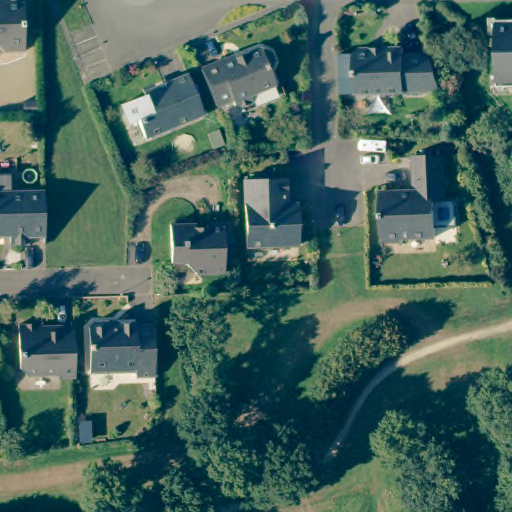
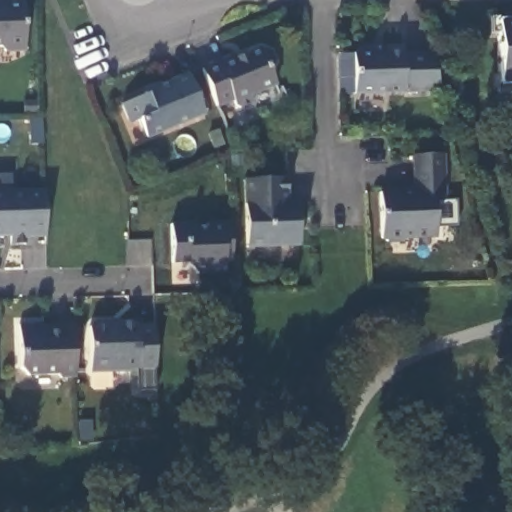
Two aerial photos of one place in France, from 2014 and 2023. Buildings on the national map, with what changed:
unchanged [(5,52),(0,49),(0,0),(22,0),(24,51),(5,52)]
unchanged [(501,93),(500,44),(499,26),(512,26),(512,93),(501,93)]
unchanged [(430,90),(354,91),(354,51),(358,46),(371,46),(376,51),(384,50),(384,45),(403,45),(404,53),(411,53),(419,53),(434,54),(444,86),(446,90),(432,90),(430,90)]
unchanged [(239,56),(241,59),(264,50),(274,54),(279,64),(274,74),(279,86),(254,96),(258,104),(245,109),(239,106),(236,101),(220,107),(206,70),(239,56)]
unchanged [(146,96),(144,93),(188,76),(203,114),(146,139),(139,121),(129,125),(121,106),(146,96)]
unchanged [(439,153),(442,154),(443,201),(433,201),(434,235),(406,237),(401,239),(387,240),(383,236),(380,236),(379,192),(401,191),(401,194),(409,193),(409,192),(414,191),(413,154),(439,153)]
unchanged [(284,175),(284,201),(291,201),(300,201),(300,244),(248,244),(247,177),(284,175)]
unchanged [(28,244),(10,245),(9,235),(0,236),(0,195),(44,194),(44,237),(28,237),(28,244)]
unchanged [(234,264),(225,264),(225,274),(199,275),(190,267),(191,264),(174,264),(174,228),(198,227),(198,231),(210,230),(210,227),(233,227),(234,264)]
unchanged [(73,379),(59,379),(53,376),(24,377),(16,369),(15,325),(40,324),(40,330),(54,330),(54,327),(71,326),(73,379)]
unchanged [(153,374),(136,374),(135,371),(118,371),(114,369),(110,369),(109,372),(89,372),(88,331),(95,324),(103,324),(110,329),(116,329),(116,325),(135,325),(135,328),(151,328),(153,374)]

